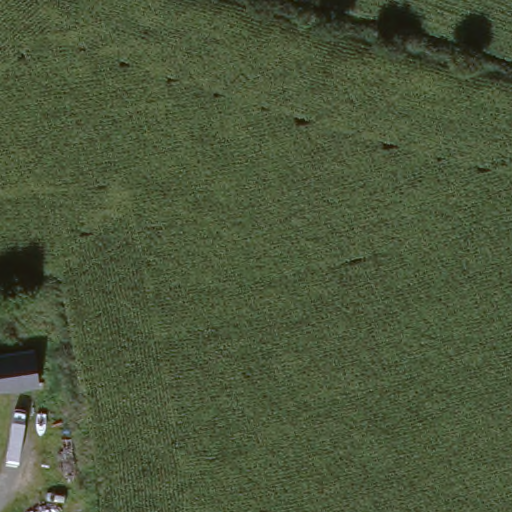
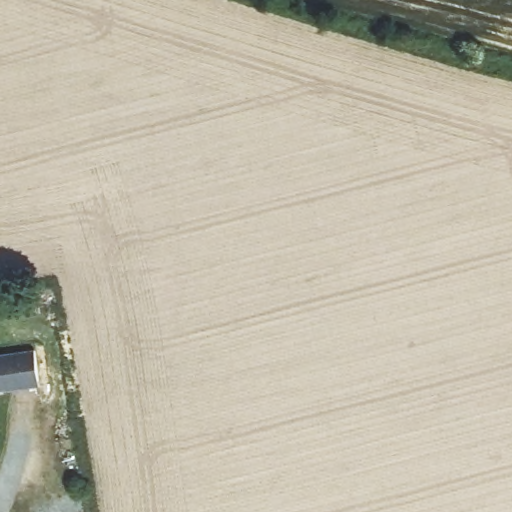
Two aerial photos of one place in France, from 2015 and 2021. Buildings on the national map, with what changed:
unchanged [(32,349),(36,383),(0,388),(0,353),(32,349)]

